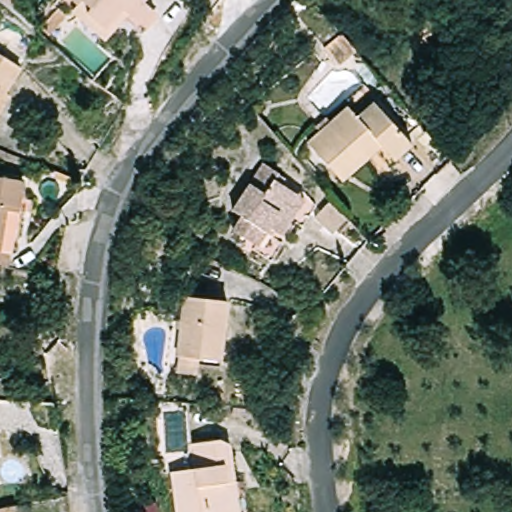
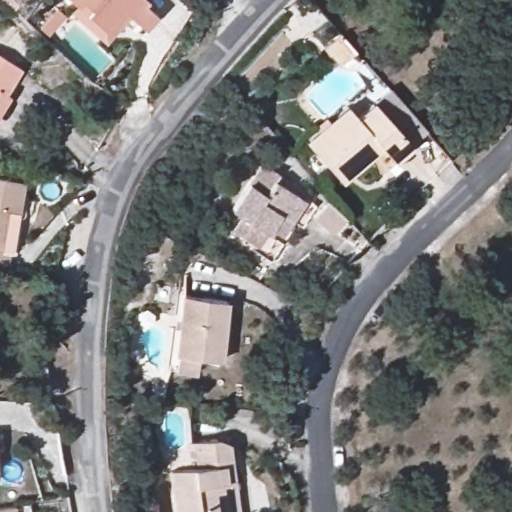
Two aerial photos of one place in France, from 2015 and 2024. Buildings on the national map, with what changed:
unchanged [(154,19),(142,31),(125,16),(119,23),(111,16),(101,28),(71,0),(144,0),(140,5),(154,19)]
unchanged [(18,73),(0,101),(0,60),(18,73)]
unchanged [(321,164),(303,144),(343,107),(352,115),(368,101),(407,143),(383,166),(371,154),(338,183),(321,164)]
unchanged [(275,174),(271,182),(297,197),(285,216),(290,219),(277,239),(262,230),(251,249),(231,237),(240,219),(232,214),(260,166),(275,174)]
unchanged [(27,186),(2,249),(0,248),(0,174),(27,186)]
unchanged [(171,373),(173,359),(180,294),(224,299),(217,364),(197,362),(195,376),(171,373)]
unchanged [(162,473),(181,469),(177,448),(206,442),(222,447),(229,486),(234,512),(169,512),(162,473)]

